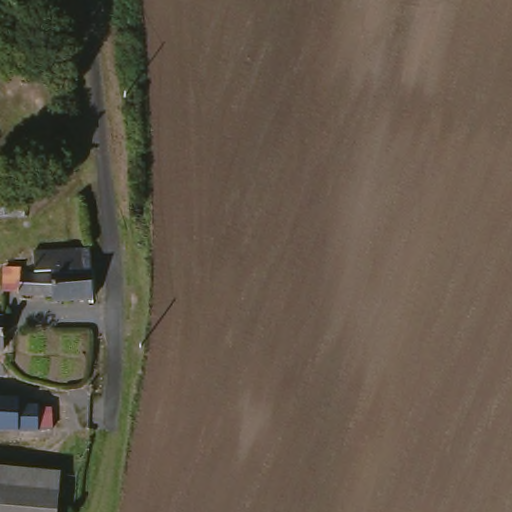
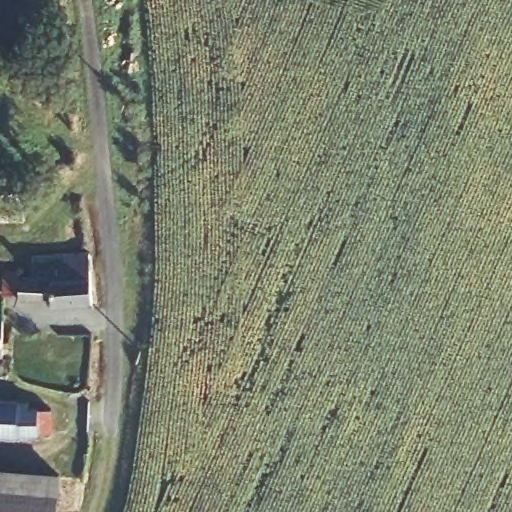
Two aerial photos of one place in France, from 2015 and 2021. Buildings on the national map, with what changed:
unchanged [(0,189),(30,190),(31,214),(0,216),(0,189)]
unchanged [(96,297),(54,300),(54,293),(24,291),(24,275),(42,276),(53,277),(52,268),(83,265),(94,265),(96,297)]
unchanged [(0,348),(0,315),(5,315),(6,347),(0,348)]
unchanged [(18,411),(36,410),(53,410),(54,430),(37,430),(0,431),(0,403),(18,402),(18,411)]
unchanged [(0,512),(0,464),(64,470),(59,512),(0,512)]

